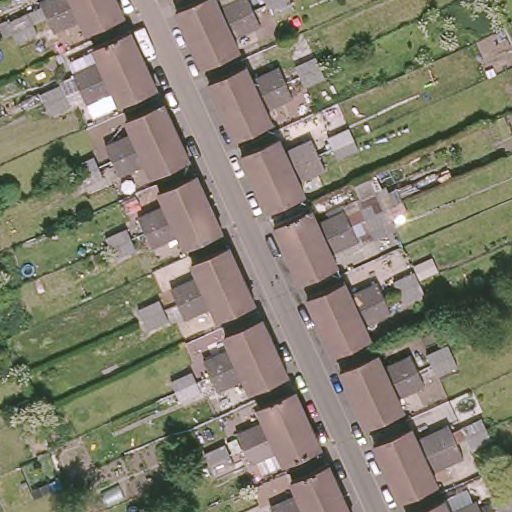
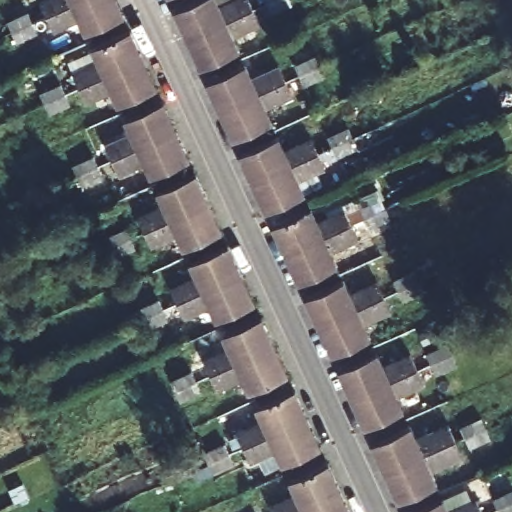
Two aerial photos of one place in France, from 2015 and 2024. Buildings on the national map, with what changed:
unchanged [(40,3),(47,0),(80,0),(46,16),(40,3)]
unchanged [(89,32),(82,16),(52,30),(46,16),(80,0),(121,0),(127,15),(89,32)]
unchanged [(182,18),(177,7),(194,0),(219,0),(222,7),(236,0),(256,0),(259,6),(191,37),(182,18)]
unchanged [(292,0),(295,6),(275,16),(270,4),(268,0),(292,0)]
unchanged [(259,6),(265,19),(234,33),(242,50),(204,66),(191,37),(259,6)]
unchanged [(10,48),(5,37),(1,28),(22,18),(27,27),(32,38),(10,48)]
unchanged [(79,87),(72,74),(102,61),(95,44),(133,27),(147,57),(79,87)]
unchanged [(297,65),(317,56),(322,67),(327,77),(307,86),(302,76),(297,65)]
unchanged [(154,74),(160,87),(122,104),(115,88),(85,101),(79,87),(147,57),(154,74)]
unchanged [(205,80),(242,63),(250,79),(280,65),(286,78),(218,109),(205,80)]
unchanged [(292,91),(262,104),(269,121),(232,137),(226,125),(218,109),(286,78),(292,91)]
unchanged [(42,120),(37,109),(32,100),(56,90),(60,99),(65,110),(42,120)]
unchanged [(105,147),(136,133),(128,117),(166,100),(178,127),(179,129),(111,160),(105,147)]
unchanged [(340,158),(336,147),(331,136),(350,127),(355,139),(360,150),(340,158)]
unchanged [(179,129),(192,158),(154,175),(147,159),(117,172),(111,160),(179,129)]
unchanged [(252,180),(250,177),(238,151),(276,135),(283,151),(312,137),(319,150),(252,180)]
unchanged [(319,150),(325,162),(295,176),(301,192),(265,209),(252,180),(319,150)]
unchanged [(75,191),(71,181),(66,172),(89,162),(92,171),(97,181),(75,191)]
unchanged [(144,232),(137,218),(168,205),(161,189),(199,172),(202,181),(212,201),(144,232)]
unchanged [(374,231),(369,219),(364,208),(382,199),(387,211),(393,222),(374,231)]
unchanged [(225,230),(187,247),(180,231),(149,244),(144,232),(212,201),(225,230)]
unchanged [(285,252),(275,231),(271,223),(308,207),(316,222),(346,209),(352,222),(285,252)]
unchanged [(357,234),(327,248),(335,265),(297,281),(285,252),(352,222),(357,234)]
unchanged [(108,263),(104,252),(99,242),(121,232),(126,242),(131,254),(108,263)]
unchanged [(171,289),(200,276),(193,260),(231,244),(245,272),(177,302),(171,289)]
unchanged [(245,272),(257,302),(219,318),(212,302),(182,315),(177,302),(245,272)]
unchanged [(406,302),(402,292),(397,281),(416,272),(421,283),(425,293),(406,302)]
unchanged [(317,325),(304,295),(341,278),(348,295),(379,282),(385,295),(317,325)]
unchanged [(391,307),(360,321),(367,337),(331,353),(323,337),(317,325),(385,295),(391,307)]
unchanged [(142,335),(137,323),(132,315),(155,305),(159,313),(163,325),(142,335)]
unchanged [(210,376),(204,362),(234,349),(226,332),(264,316),(275,341),(277,346),(210,376)]
unchanged [(439,374),(434,363),(429,352),(448,343),(453,355),(458,366),(439,374)]
unchanged [(290,373),(252,390),(245,375),(216,388),(210,376),(277,346),(290,373)]
unchanged [(347,391),(337,367),(374,350),(381,367),(412,353),(417,366),(350,397),(347,391)]
unchanged [(417,366),(423,379),(394,393),(401,409),(364,426),(350,397),(417,366)]
unchanged [(175,407),(170,397),(166,387),(187,377),(191,387),(196,398),(175,407)]
unchanged [(244,447),(237,432),(266,421),(259,404),(297,387),(299,393),(310,418),(244,447)]
unchanged [(324,447),(286,463),(278,447),(249,461),(244,447),(310,418),(324,447)]
unchanged [(472,447),(468,437),(463,427),(483,419),(487,429),(492,438),(472,447)]
unchanged [(372,443),(370,440),(407,423),(415,439),(445,426),(451,440),(384,471),(372,443)]
unchanged [(451,440),(457,452),(427,466),(435,482),(397,499),(396,497),(384,471),(451,440)]
unchanged [(207,477),(202,468),(197,458),(219,449),(224,460),(227,468),(207,477)]
unchanged [(270,506),(300,493),(292,477),(330,461),(344,492),(297,512),(273,512),(270,506)]
unchanged [(501,509),(496,498),(512,491),(512,512),(502,512),(501,509)]
unchanged [(344,492),(348,500),(353,512),(297,512),(344,492)]
unchanged [(441,497),(448,512),(406,512),(441,497)]
unchanged [(483,512),(449,512),(479,498),(485,512),(483,512)]

